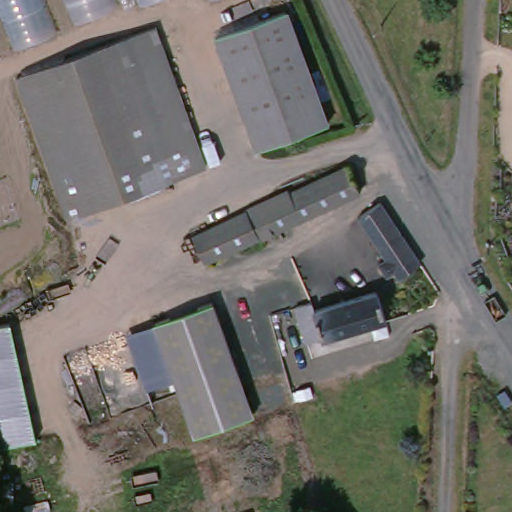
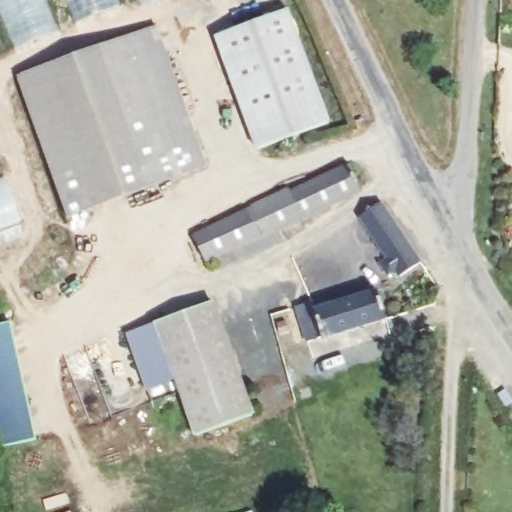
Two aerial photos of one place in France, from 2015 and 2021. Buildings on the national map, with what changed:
unchanged [(17,55),(0,16),(0,0),(43,0),(59,37),(17,55)]
unchanged [(81,32),(67,0),(115,0),(121,14),(81,32)]
unchanged [(136,0),(173,0),(142,12),(136,0)]
unchanged [(207,0),(222,0),(210,5),(207,0)]
unchanged [(324,129),(257,155),(214,41),(283,15),(324,129)]
unchanged [(150,40),(195,176),(67,224),(20,81),(150,40)]
unchanged [(350,166),(362,186),(367,192),(204,279),(187,249),(280,202),(345,169),(350,166)]
new [(20,220),(0,228),(0,182),(5,180),(20,220)]
unchanged [(393,281),(385,285),(378,273),(386,268),(362,224),(383,211),(420,274),(397,287),(393,281)]
unchanged [(379,317),(382,332),(317,349),(308,315),(378,298),(382,316),(379,317)]
unchanged [(156,323),(215,303),(239,377),(231,379),(228,370),(177,390),(174,379),(156,323)]
unchanged [(0,325),(7,323),(33,440),(0,446),(0,325)]
unchanged [(156,323),(174,379),(147,389),(129,332),(156,323)]
unchanged [(228,370),(231,379),(239,377),(250,412),(191,433),(177,390),(228,370)]

